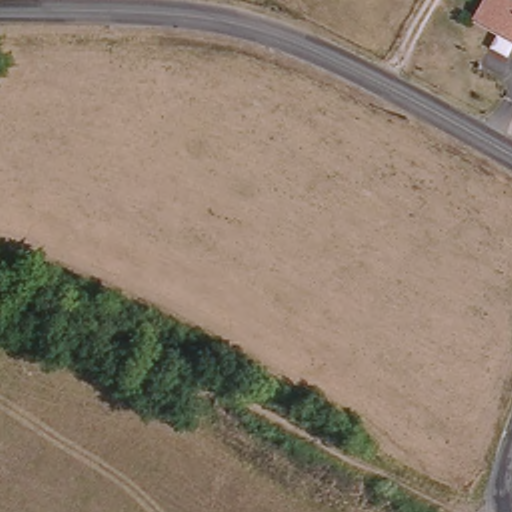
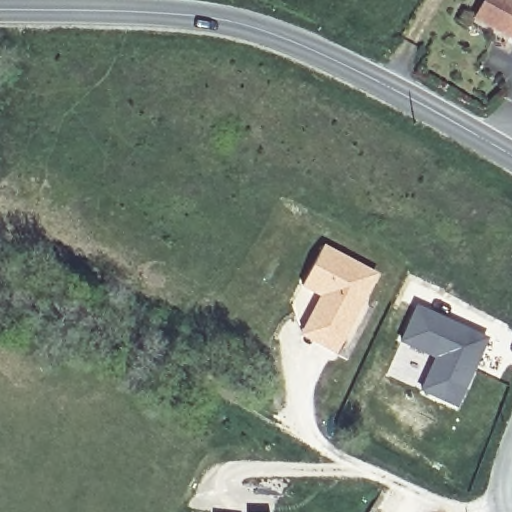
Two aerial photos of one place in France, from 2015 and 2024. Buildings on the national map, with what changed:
unchanged [(487,0),(512,0),(512,37),(477,17),(487,0)]
new [(322,245),(375,273),(358,303),(355,302),(352,307),(355,309),(332,351),(301,333),(291,303),(322,245)]
new [(436,357),(402,341),(417,308),(485,340),(456,406),(422,390),(436,357)]

